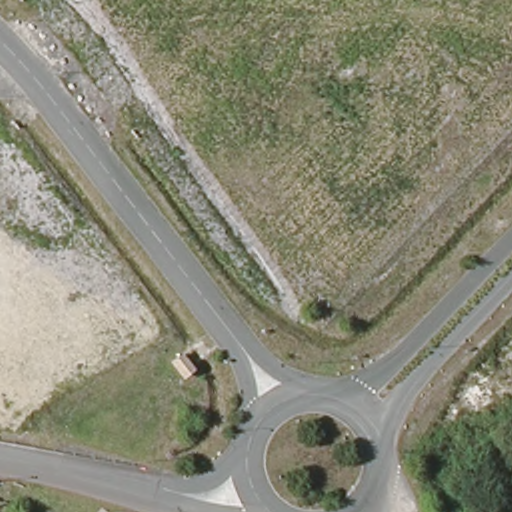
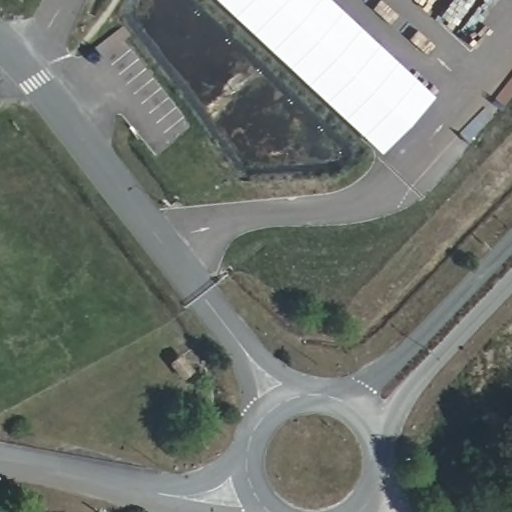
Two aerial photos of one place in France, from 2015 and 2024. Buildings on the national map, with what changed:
new [(425,95),(370,154),(203,0),(320,0),(425,95)]

